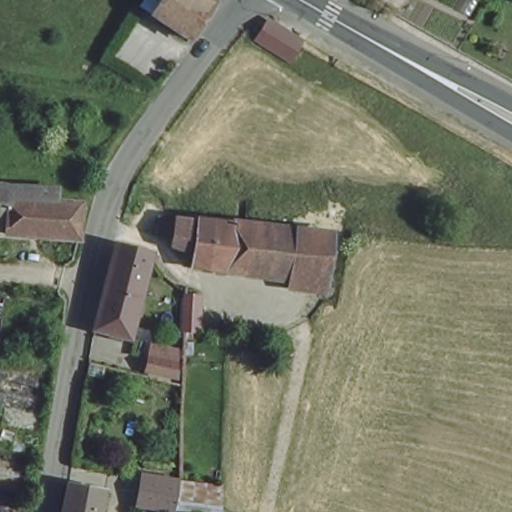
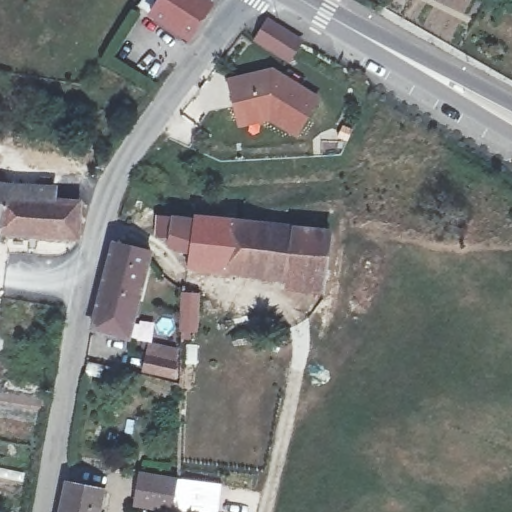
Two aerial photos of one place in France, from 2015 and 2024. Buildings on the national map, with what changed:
unchanged [(192,44),(144,15),(152,0),(199,0),(212,8),(192,44)]
unchanged [(289,59),(252,38),(260,22),(297,42),(289,59)]
new [(226,80),(272,66),(321,96),(296,139),(269,120),(237,127),(226,80)]
unchanged [(6,199),(47,196),(48,209),(73,216),(76,236),(75,250),(4,240),(4,232),(6,199)]
unchanged [(6,199),(4,232),(0,232),(0,198),(6,199)]
unchanged [(310,300),(310,290),(192,272),(192,260),(172,255),(171,249),(150,243),(154,220),(168,221),(174,228),(194,231),(194,227),(289,240),(328,245),(324,302),(310,300)]
unchanged [(93,330),(107,265),(110,245),(147,255),(142,273),(128,339),(93,330)]
unchanged [(192,337),(179,335),(180,300),(194,301),(192,337)]
unchanged [(144,379),(147,362),(173,367),(173,385),(144,379)]
unchanged [(139,480),(178,485),(176,512),(156,512),(136,508),(139,480)]
unchanged [(219,484),(218,512),(176,512),(178,485),(178,483),(219,484)]
unchanged [(59,491),(95,496),(93,512),(56,512),(59,491)]

